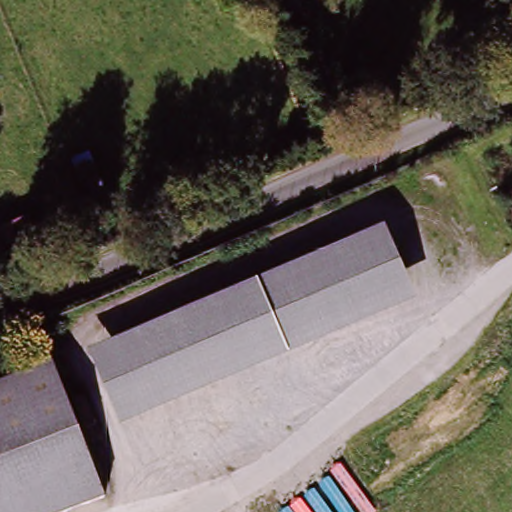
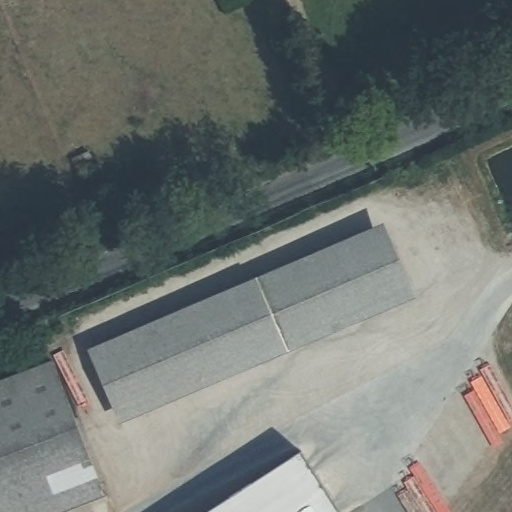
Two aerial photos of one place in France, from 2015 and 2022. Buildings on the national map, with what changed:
unchanged [(27,223),(37,248),(0,262),(0,232),(27,223)]
unchanged [(90,352),(386,227),(419,304),(121,426),(90,352)]
unchanged [(61,360),(107,497),(63,512),(0,512),(0,381),(61,360)]
new [(309,451),(348,512),(214,512),(309,451)]

